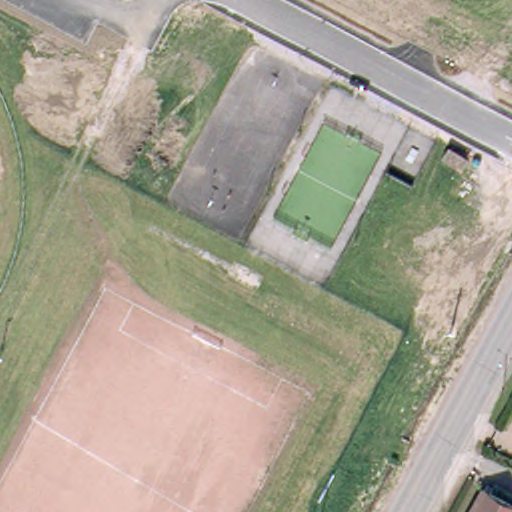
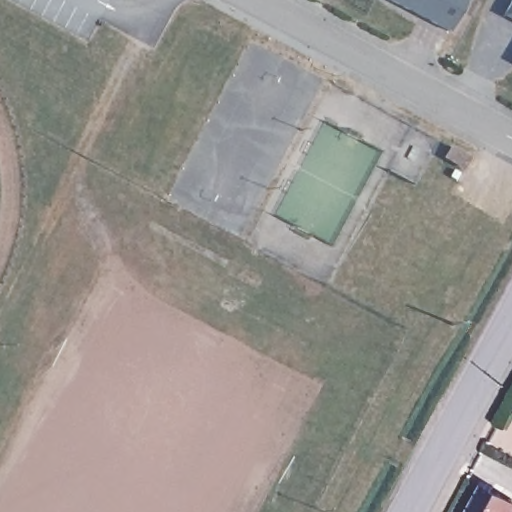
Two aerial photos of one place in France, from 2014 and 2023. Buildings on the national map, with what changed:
new [(389,0),(464,0),(449,31),(389,0)]
new [(512,0),(512,18),(504,13),(511,0),(512,0)]
unchanged [(480,480),(512,498),(512,506),(508,512),(463,512),(480,480)]

